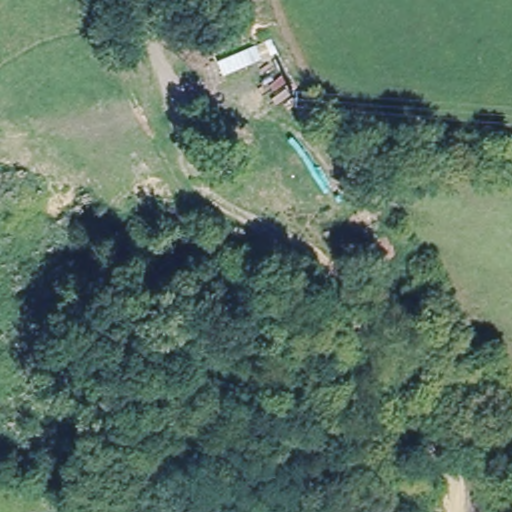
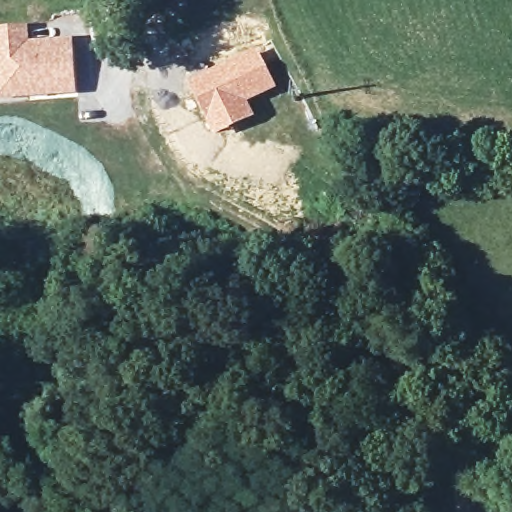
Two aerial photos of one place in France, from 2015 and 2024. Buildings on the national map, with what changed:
new [(0,97),(0,29),(26,27),(26,44),(54,42),(69,42),(70,53),(71,53),(71,56),(70,56),(71,79),(72,78),(72,81),(71,81),(72,93),(31,96),(0,97)]
new [(256,46),(277,88),(249,102),(255,117),(213,136),(185,76),(256,46)]

